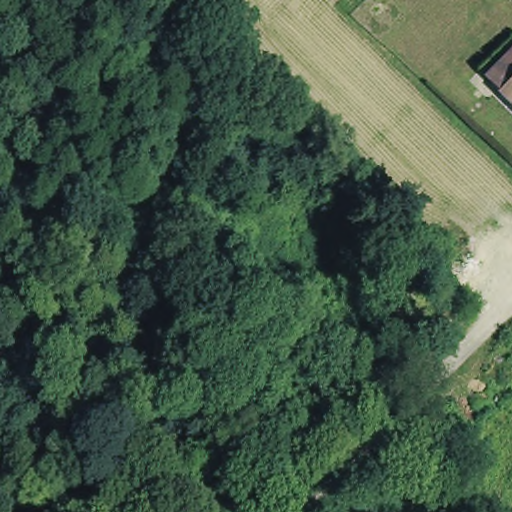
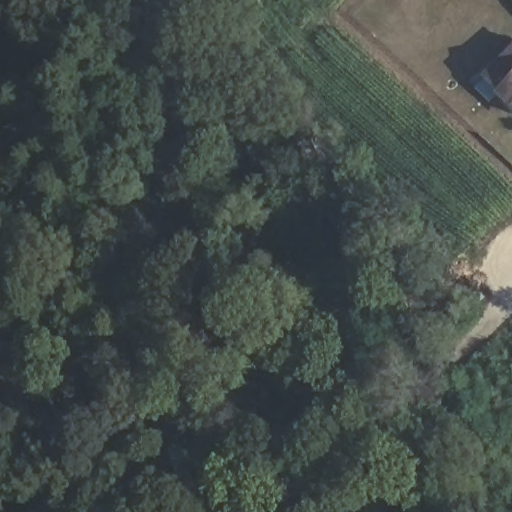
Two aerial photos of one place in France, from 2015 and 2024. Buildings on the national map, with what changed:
unchanged [(486,82),(512,51),(512,84),(502,96),(486,82)]
unchanged [(512,84),(512,105),(502,96),(512,84)]

